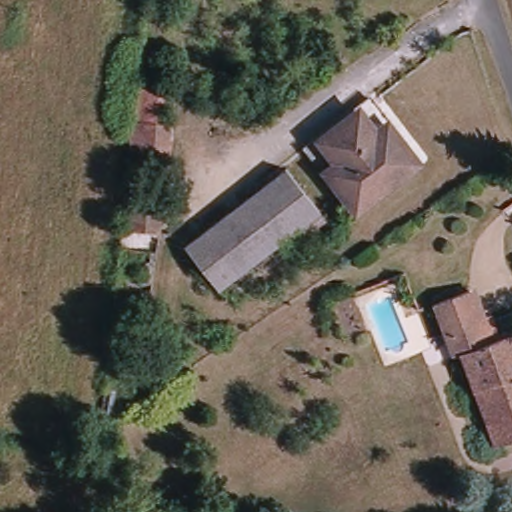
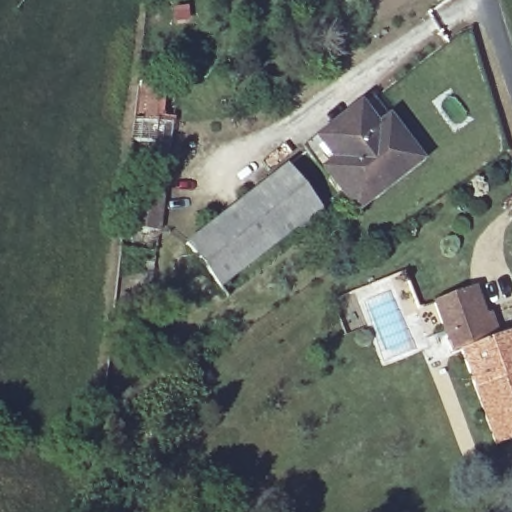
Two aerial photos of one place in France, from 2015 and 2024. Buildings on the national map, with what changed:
unchanged [(123,227),(140,86),(165,89),(163,120),(173,120),(160,230),(123,227)]
unchanged [(375,91),(404,130),(398,135),(413,156),(356,199),(341,179),(336,182),(306,144),(375,91)]
unchanged [(215,281),(183,239),(287,160),(319,202),(215,281)]
unchanged [(460,350),(457,349),(439,301),(474,288),(486,325),(474,330),(479,345),(512,333),(512,434),(496,440),(460,350)]

